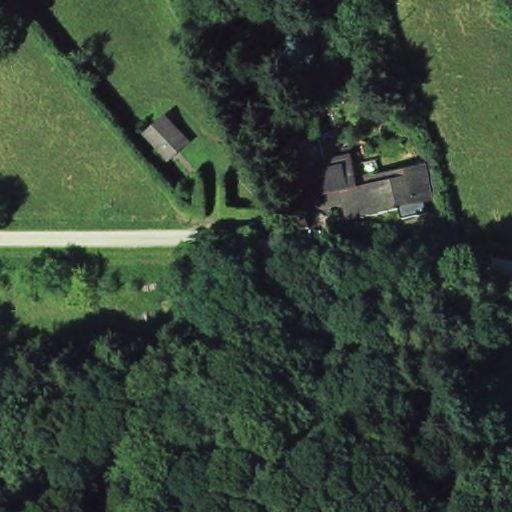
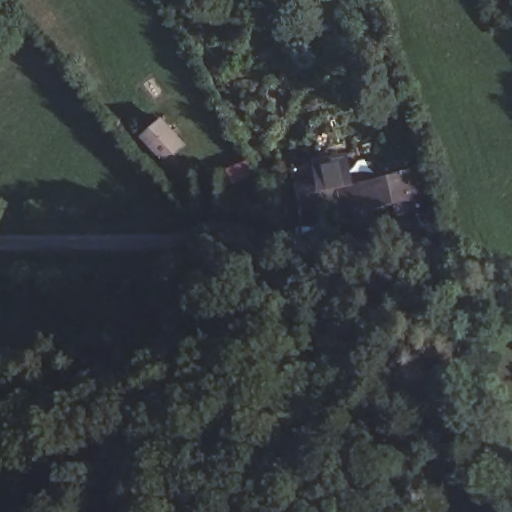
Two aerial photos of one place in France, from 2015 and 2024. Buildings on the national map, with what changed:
unchanged [(168,160),(155,145),(148,136),(165,123),(171,132),(184,147),(168,160)]
unchanged [(299,196),(315,192),(311,172),(353,163),(355,172),(372,169),(375,184),(422,175),(425,189),(419,191),(421,202),(392,207),(393,212),(355,221),(354,218),(344,220),(341,207),(325,210),(326,215),(304,219),(299,196)]

